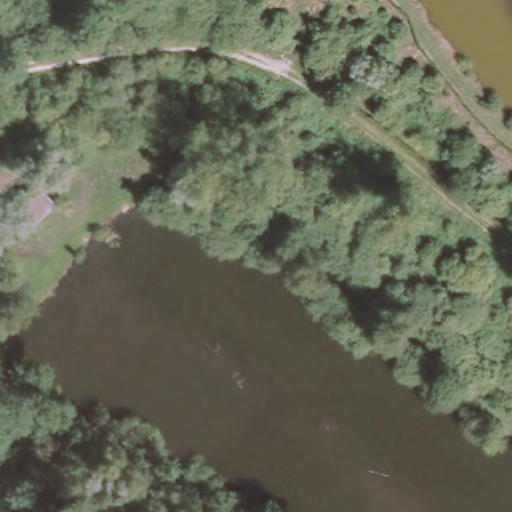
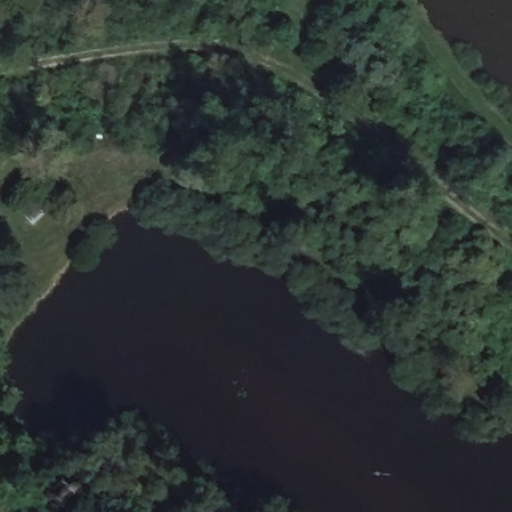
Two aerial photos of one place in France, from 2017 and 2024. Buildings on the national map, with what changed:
unchanged [(0,224),(42,185),(61,205),(13,246),(0,234),(0,224)]

